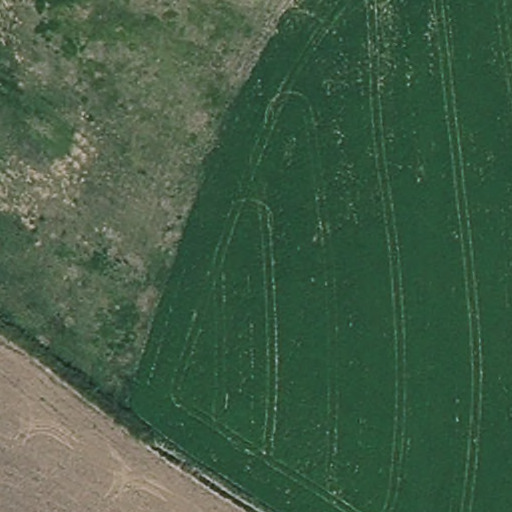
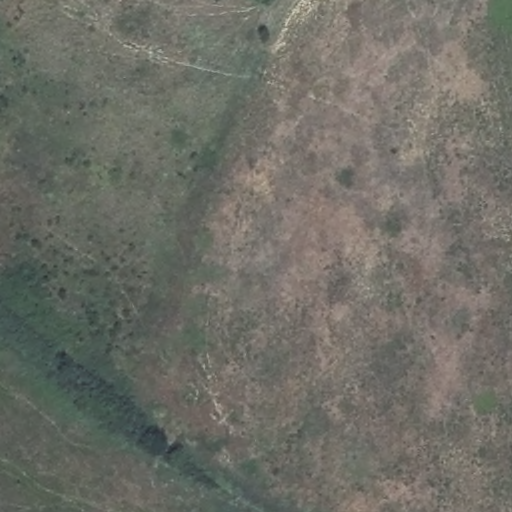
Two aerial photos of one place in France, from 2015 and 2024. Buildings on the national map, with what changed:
[]

